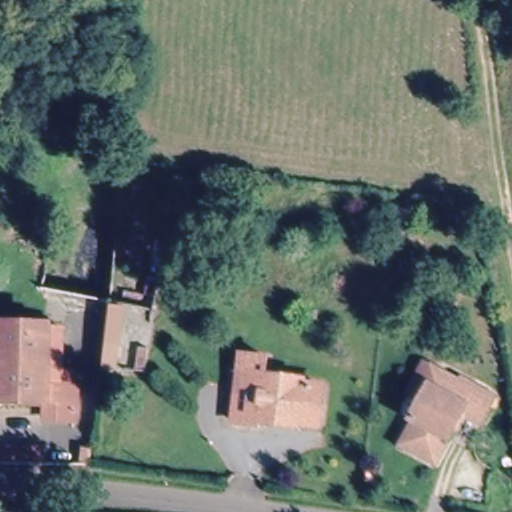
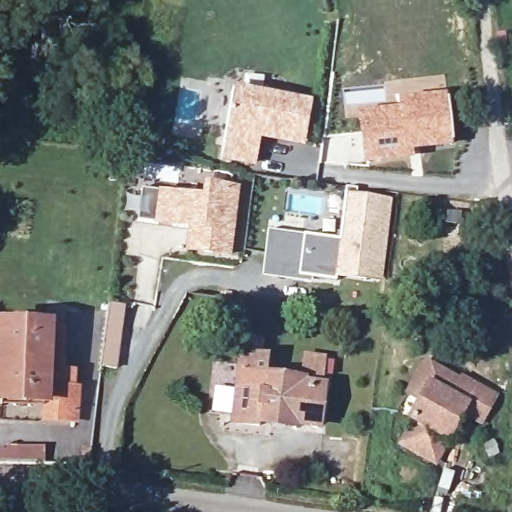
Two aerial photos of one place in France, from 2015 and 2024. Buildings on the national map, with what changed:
new [(221,162),(234,88),(311,101),(305,150),(260,141),(255,168),(221,162)]
new [(398,108),(397,101),(447,96),(454,148),(413,153),(414,160),(363,167),(357,114),(398,108)]
new [(143,189),(201,197),(202,183),(239,189),(231,259),(185,252),(187,229),(139,220),(143,189)]
new [(266,232),(302,236),(338,240),(343,194),(391,201),(382,283),(336,279),(336,282),(311,279),(310,284),(261,278),(266,232)]
unchanged [(119,319),(114,362),(100,359),(106,316),(119,319)]
unchanged [(50,372),(71,373),(70,389),(77,389),(76,418),(47,417),(48,406),(0,405),(0,323),(53,326),(50,372)]
unchanged [(318,429),(254,423),(253,426),(229,424),(235,356),(260,358),(258,377),(300,381),(299,383),(322,386),(318,429)]
unchanged [(436,367),(459,380),(460,378),(492,395),(478,420),(456,407),(447,422),(451,425),(432,460),(399,442),(413,419),(408,417),(436,367)]

